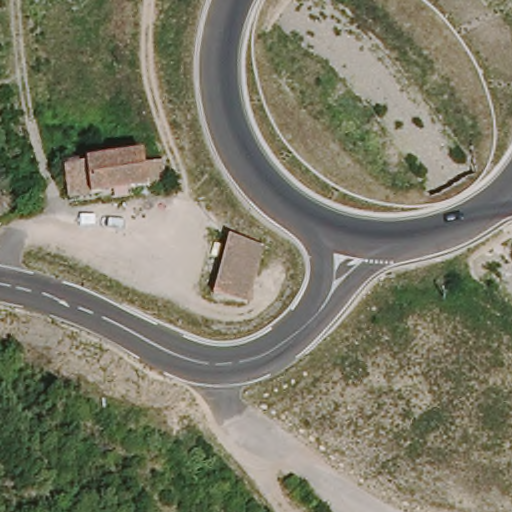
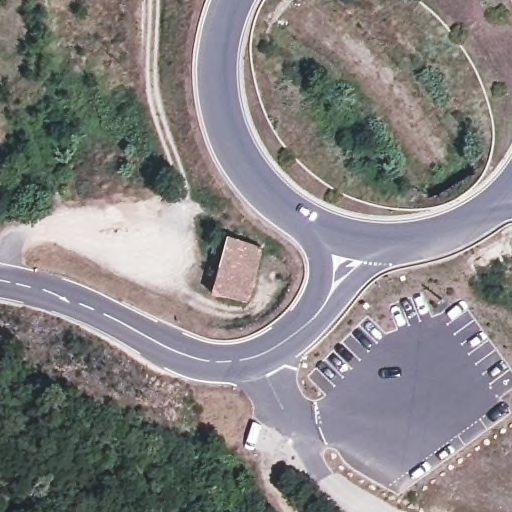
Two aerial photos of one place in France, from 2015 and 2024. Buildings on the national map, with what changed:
demolished [(138,151),(139,157),(161,155),(163,177),(132,181),(111,183),(105,156),(138,151)]
demolished [(61,162),(105,156),(111,183),(96,186),(66,191),(61,162)]
unchanged [(5,194),(11,216),(0,219),(0,195),(5,194)]
unchanged [(263,247),(251,300),(214,292),(231,236),(263,247)]

